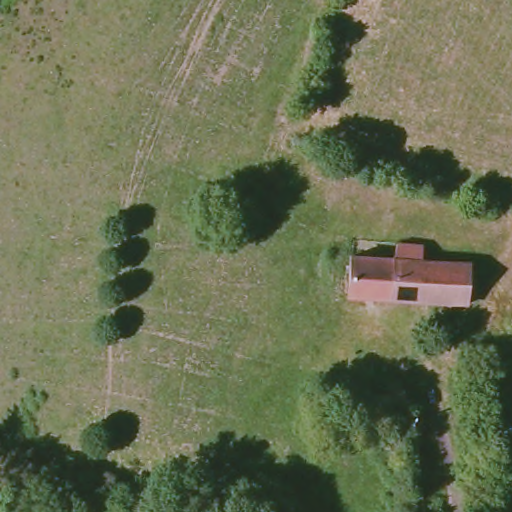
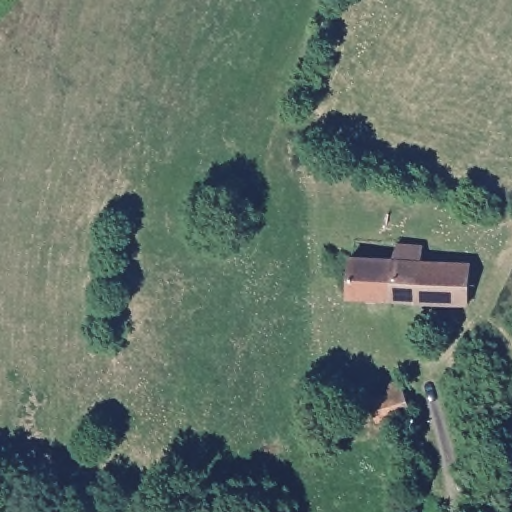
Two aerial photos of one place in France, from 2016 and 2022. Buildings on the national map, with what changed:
unchanged [(393,258),(395,243),(425,245),(424,262),(473,266),(472,307),(348,297),(350,255),(393,258)]
unchanged [(378,420),(372,397),(390,392),(388,383),(401,380),(410,412),(378,420)]

